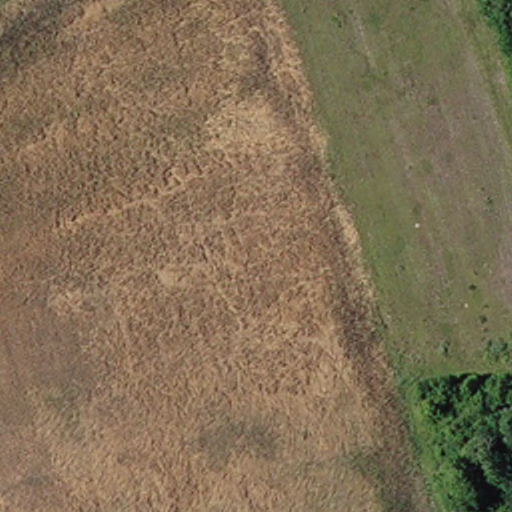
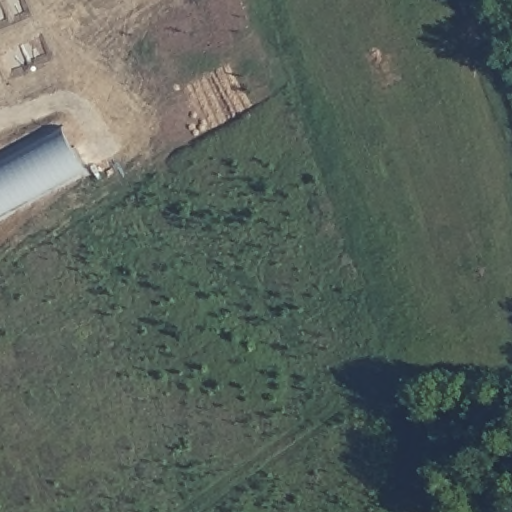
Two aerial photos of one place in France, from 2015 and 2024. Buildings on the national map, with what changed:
new [(89,174),(0,219),(0,156),(62,124),(89,174)]

